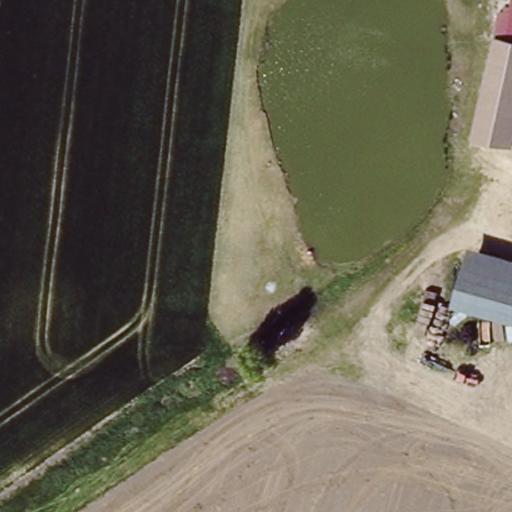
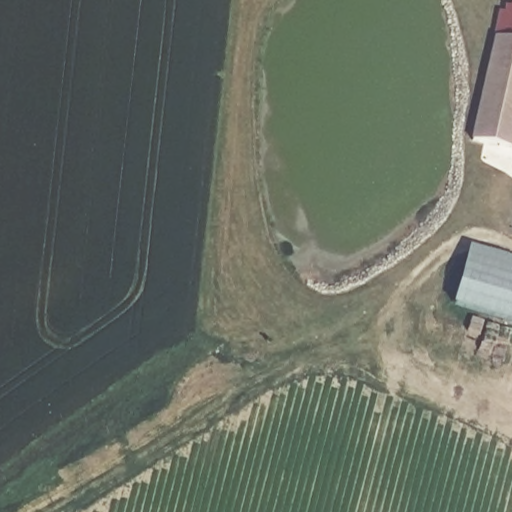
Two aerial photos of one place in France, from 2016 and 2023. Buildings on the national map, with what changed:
unchanged [(470,140),(495,38),(507,38),(512,13),(512,133),(508,149),(470,140)]
unchanged [(512,324),(454,311),(470,247),(512,258),(512,324)]

